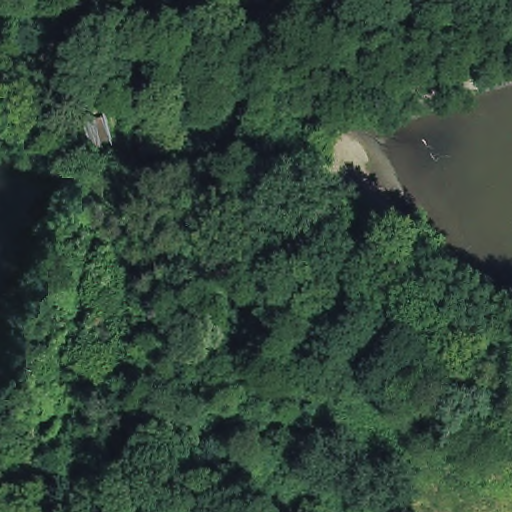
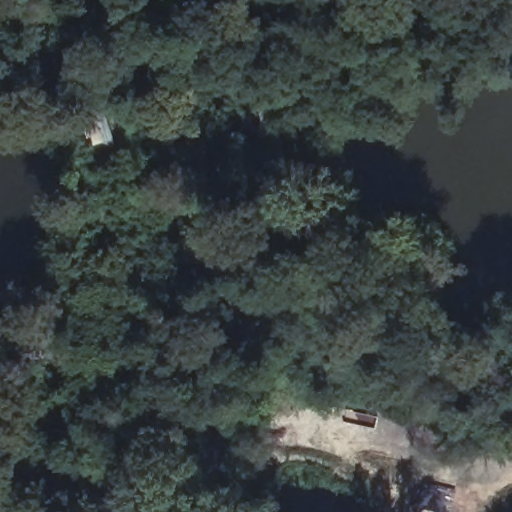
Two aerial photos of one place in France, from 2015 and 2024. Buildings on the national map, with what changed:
unchanged [(92,144),(85,121),(108,114),(115,136),(92,144)]

